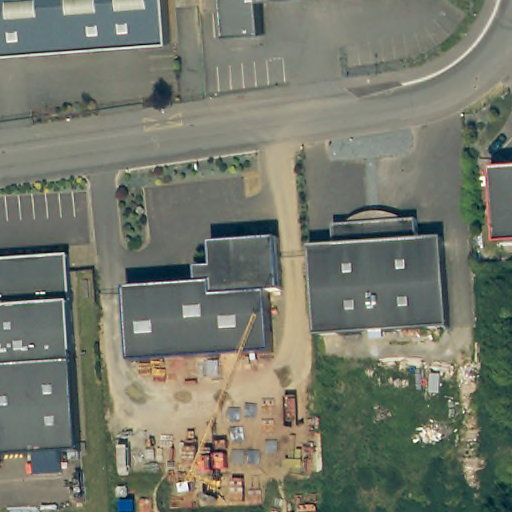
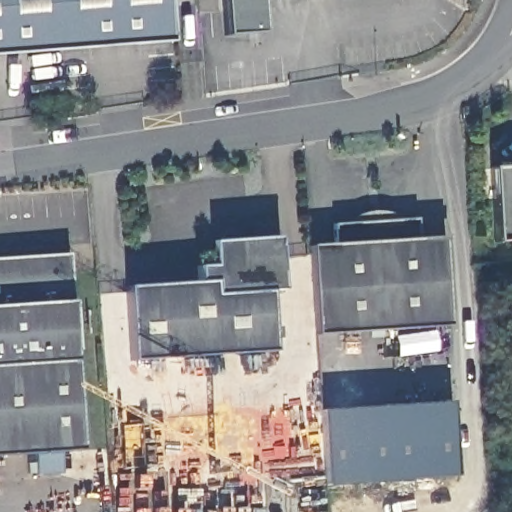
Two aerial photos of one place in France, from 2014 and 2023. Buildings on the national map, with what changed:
unchanged [(167,0),(170,42),(0,56),(0,0),(167,0)]
unchanged [(225,35),(222,0),(259,0),(261,33),(225,35)]
unchanged [(491,167),(512,166),(512,242),(496,243),(491,167)]
unchanged [(334,244),(333,224),(416,219),(418,239),(443,237),(449,327),(315,335),(309,246),(334,244)]
unchanged [(126,286),(198,282),(197,266),(213,265),(212,251),(221,240),(279,237),(282,290),(270,291),(274,352),(131,361),(126,286)]
unchanged [(64,450),(62,472),(36,474),(38,452),(0,455),(0,259),(68,255),(70,303),(79,449),(64,450)]
new [(326,486),(320,412),(451,402),(455,477),(326,486)]

